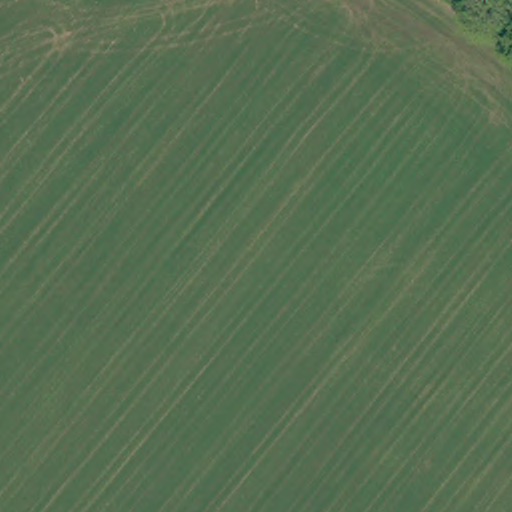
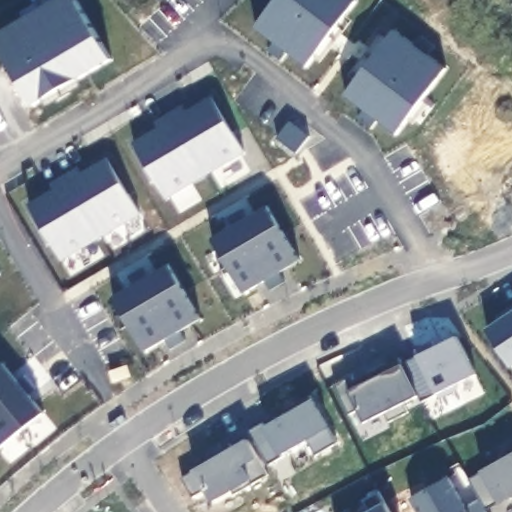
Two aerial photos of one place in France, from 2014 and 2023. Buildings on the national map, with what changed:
new [(110,60),(65,86),(69,93),(56,100),(52,94),(31,106),(0,54),(0,33),(56,0),(75,0),(110,60)]
new [(275,0),(353,0),(355,1),(334,30),(341,35),(331,49),(324,43),(306,66),(287,52),(280,60),(267,51),(274,42),(255,27),(275,0)]
new [(394,30),(413,45),(420,36),(433,46),(426,55),(446,70),(424,97),(431,103),(421,116),(414,111),(397,135),(377,120),(370,129),(357,119),(364,110),(345,95),(394,30)]
new [(165,198),(132,144),(158,129),(154,123),(182,106),(185,113),(211,97),(243,152),(165,198)]
new [(53,190),(50,185),(76,169),(80,175),(106,159),(138,214),(60,260),(28,206),(53,190)]
new [(232,227),(226,218),(240,210),(246,220),(267,206),(299,261),(278,273),(284,282),(269,291),(264,281),(243,294),(211,240),(232,227)]
new [(200,318),(179,331),(185,340),(170,349),(165,340),(144,351),(112,298),(133,286),(128,276),(141,268),(147,277),(168,265),(200,318)]
new [(493,326),(512,314),(512,355),(493,326)]
new [(417,356),(414,350),(431,341),(434,347),(456,337),(475,376),(455,386),(457,390),(439,400),(436,395),(421,403),(401,364),(417,356)]
new [(403,404),(407,413),(388,423),(383,414),(364,423),(357,411),(348,415),(333,385),(351,377),(353,381),(398,358),(418,397),(403,404)]
new [(16,382),(25,375),(36,387),(27,395),(42,413),(0,448),(0,364),(1,363),(16,382)]
new [(262,423),(265,428),(289,414),(286,410),(309,396),(336,444),(315,456),(306,441),(281,455),(282,457),(267,466),(247,432),(262,423)]
new [(233,496),(230,491),(211,502),(205,491),(192,498),(180,479),(213,460),(210,455),(228,444),(231,450),(247,440),(267,476),(233,496)]
new [(512,454),(512,496),(485,512),(467,480),(512,454)]
new [(416,512),(409,499),(449,478),(465,508),(478,500),(484,512),(416,512)]
new [(368,512),(360,496),(383,487),(395,512),(368,512)]
new [(329,512),(301,512),(324,502),(329,512)]

